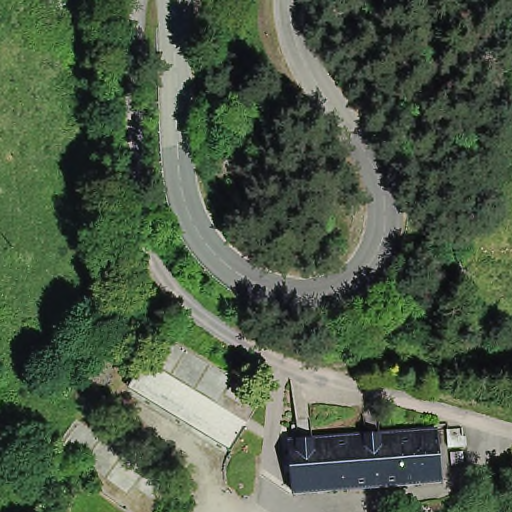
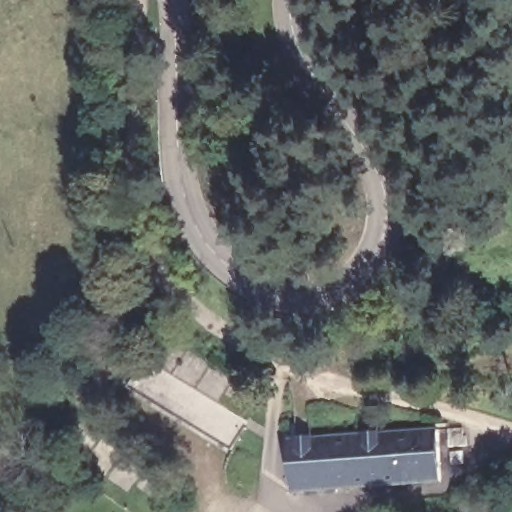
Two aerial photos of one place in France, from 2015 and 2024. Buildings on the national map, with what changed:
unchanged [(243,420),(224,452),(123,396),(140,364),(243,420)]
unchanged [(469,443),(443,445),(441,425),(457,425),(458,431),(467,431),(469,443)]
unchanged [(441,476),(295,494),(289,442),(434,427),(441,476)]

